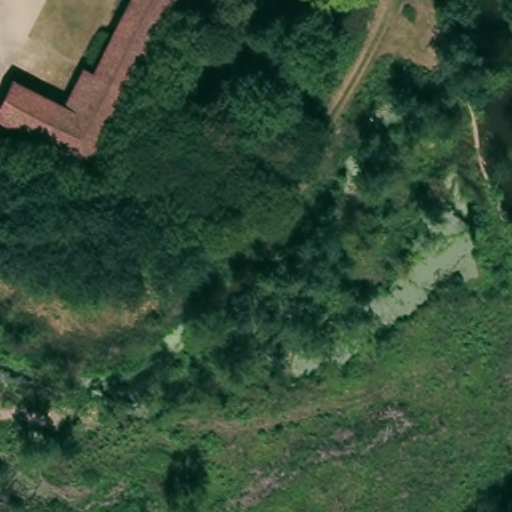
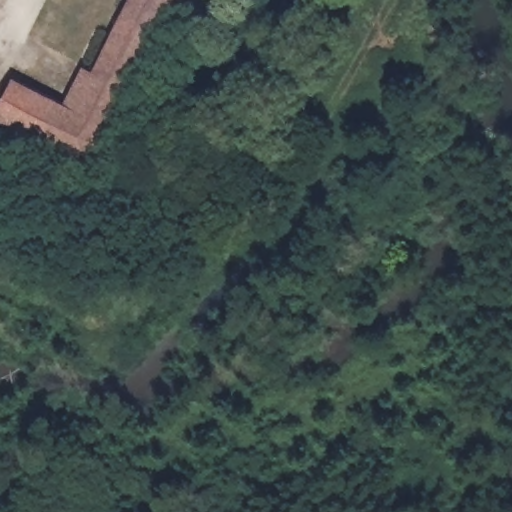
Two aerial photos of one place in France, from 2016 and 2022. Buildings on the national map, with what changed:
unchanged [(186,1),(181,11),(173,15),(164,12),(124,94),(119,105),(89,168),(80,164),(0,125),(0,100),(10,81),(63,110),(81,73),(91,77),(132,0),(186,0),(186,1)]

